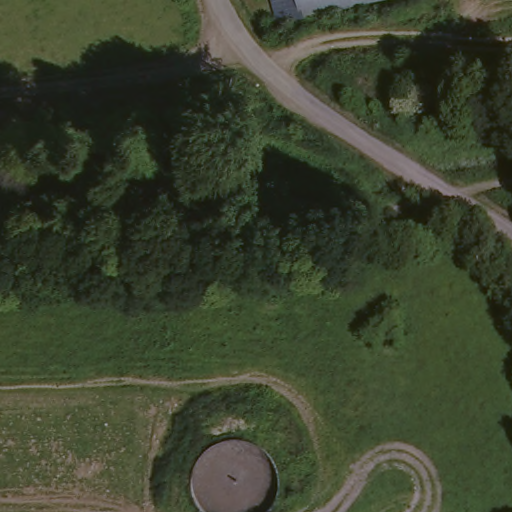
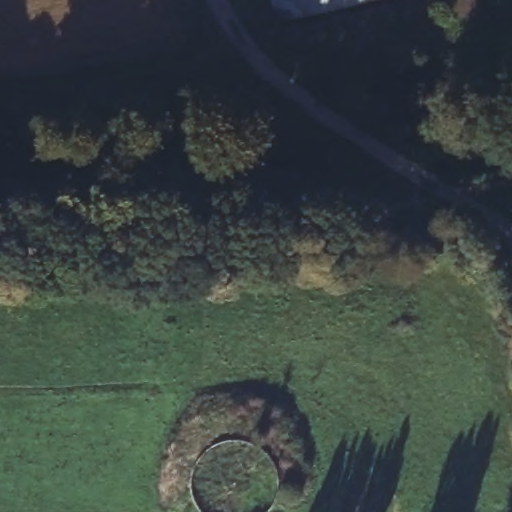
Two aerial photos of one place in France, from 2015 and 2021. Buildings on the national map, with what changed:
unchanged [(368,0),(279,12),(275,0),(368,0)]

